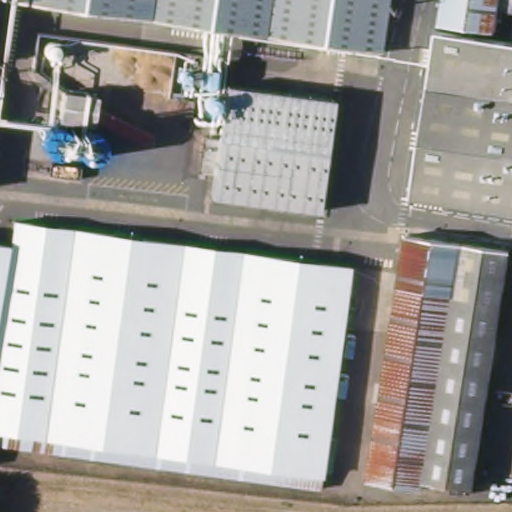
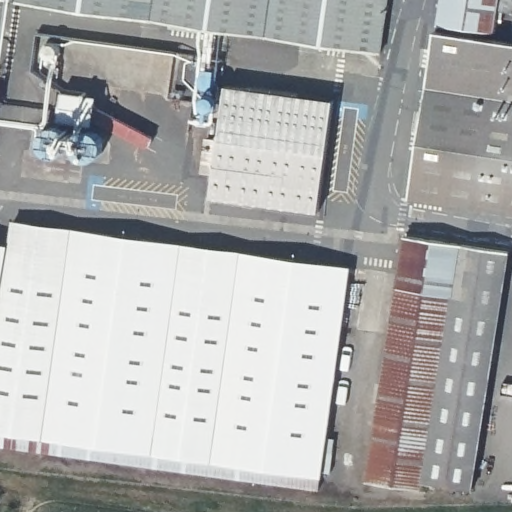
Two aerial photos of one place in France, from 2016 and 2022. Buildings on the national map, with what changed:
unchanged [(381,52),(17,1),(17,0),(388,0),(381,52)]
unchanged [(500,32),(443,24),(446,0),(512,0),(512,12),(503,10),(500,32)]
unchanged [(439,30),(512,42),(512,212),(413,196),(439,30)]
unchanged [(1,73),(0,84),(0,73),(1,73)]
unchanged [(339,102),(325,210),(216,195),(219,174),(207,171),(212,137),(224,139),(231,87),(339,102)]
unchanged [(97,103),(93,130),(59,125),(63,99),(97,103)]
unchanged [(46,134),(50,131),(54,130),(58,130),(63,131),(67,134),(69,136),(71,139),(72,143),(72,146),(71,150),(69,154),(66,157),(63,159),(60,160),(56,160),(53,160),(51,160),(46,156),(44,154),(42,150),(41,145),(42,140),(43,138),(46,134)]
unchanged [(80,136),(84,134),(87,133),(91,133),(95,134),(99,135),(102,139),(104,142),(105,147),(105,151),(104,155),(102,158),(99,161),(96,163),(92,164),(87,164),(84,163),(81,161),(78,159),(75,154),(74,150),(74,146),(76,142),(77,140),(80,136)]
unchanged [(68,187),(22,181),(25,158),(70,164),(68,187)]
unchanged [(8,245),(12,220),(350,267),(320,488),(0,444),(0,244),(8,245)]
unchanged [(512,261),(476,489),(429,481),(428,488),(373,480),(411,235),(512,251),(512,261)]

